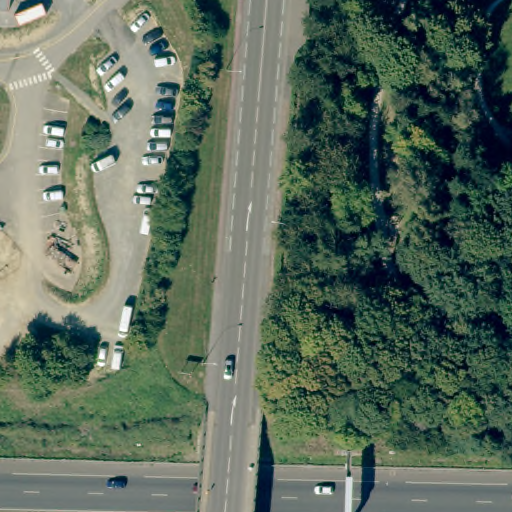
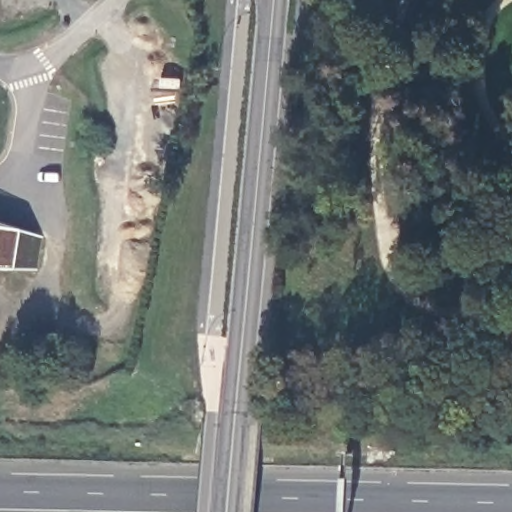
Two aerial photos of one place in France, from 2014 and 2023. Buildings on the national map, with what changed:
new [(0,222),(24,231),(45,236),(40,270),(17,269),(0,268),(0,222)]

